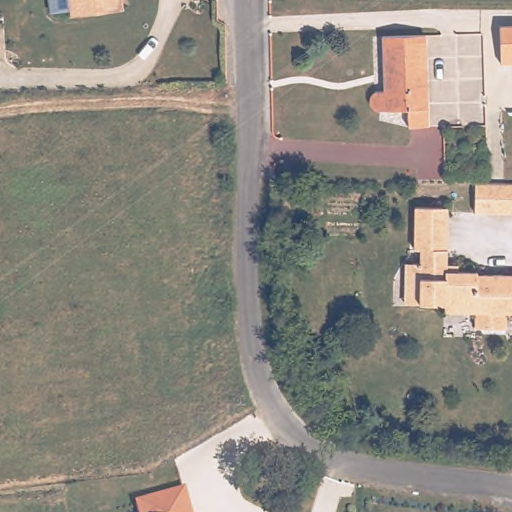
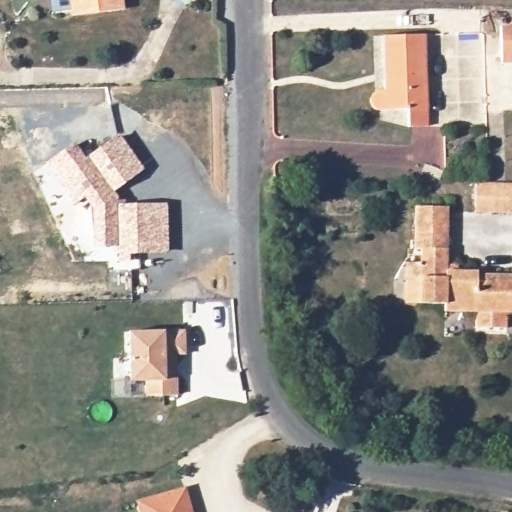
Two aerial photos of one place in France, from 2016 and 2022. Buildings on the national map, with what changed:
unchanged [(125,6),(72,11),(71,0),(124,0),(125,6)]
unchanged [(505,20),(512,20),(512,57),(503,57),(505,20)]
unchanged [(430,30),(428,120),(412,119),(412,102),(381,102),(374,90),(388,82),(388,29),(430,30)]
new [(45,162),(74,142),(85,157),(118,135),(144,170),(114,191),(121,200),(126,200),(125,204),(169,204),(169,254),(128,253),(130,262),(117,262),(119,247),(93,247),(92,208),(83,197),(75,205),(45,162)]
unchanged [(512,183),(512,213),(478,212),(478,182),(512,183)]
unchanged [(425,242),(417,242),(417,201),(450,202),(449,244),(425,242)]
unchanged [(448,265),(482,265),(482,270),(512,271),(512,307),(510,307),(510,323),(478,322),(478,307),(450,307),(449,301),(422,299),(406,300),(407,257),(424,258),(425,242),(449,244),(448,265)]
unchanged [(145,381),(127,380),(127,331),(163,330),(186,329),(185,355),(176,356),(177,395),(143,395),(145,381)]
unchanged [(194,512),(140,512),(137,501),(187,487),(194,512)]

